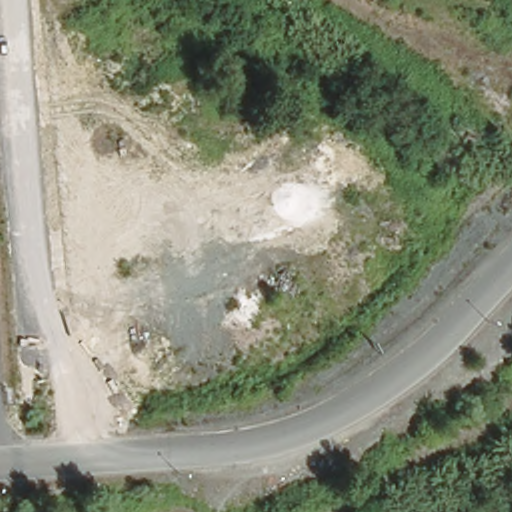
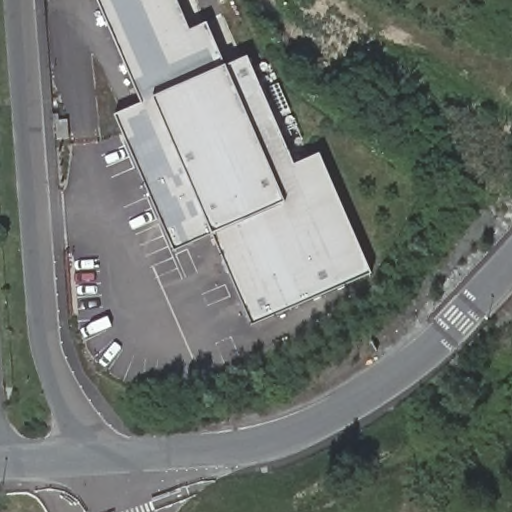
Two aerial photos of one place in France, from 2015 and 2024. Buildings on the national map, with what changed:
new [(190,30),(206,23),(224,67),(247,58),(292,166),(319,155),(370,275),(252,327),(212,236),(175,253),(117,115),(143,104),(98,0),(177,0),(190,30)]

